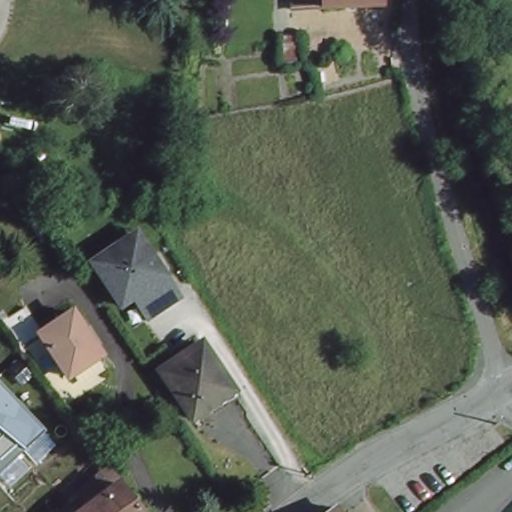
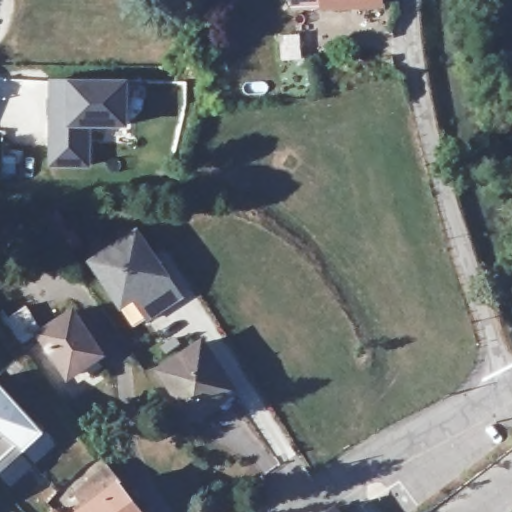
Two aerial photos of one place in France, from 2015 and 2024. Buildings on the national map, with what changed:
unchanged [(396,5),(307,12),(306,0),(395,0),(396,5)]
new [(125,78),(124,127),(89,127),(88,168),(46,169),(43,77),(125,78)]
unchanged [(141,314),(125,290),(113,298),(86,259),(100,250),(101,243),(121,230),(131,223),(138,234),(176,290),(141,314)]
unchanged [(97,351),(65,373),(36,330),(68,308),(97,351)]
unchanged [(233,390),(192,419),(160,370),(201,341),(233,390)]
unchanged [(0,473),(0,387),(44,433),(0,473)]
unchanged [(120,482),(116,484),(138,512),(117,512),(88,477),(105,463),(120,482)]
unchanged [(90,512),(85,506),(90,502),(77,487),(88,477),(117,512),(90,512)]
unchanged [(81,501),(85,506),(90,512),(79,512),(75,507),(81,501)]
unchanged [(340,512),(338,512),(340,511),(340,512)]

